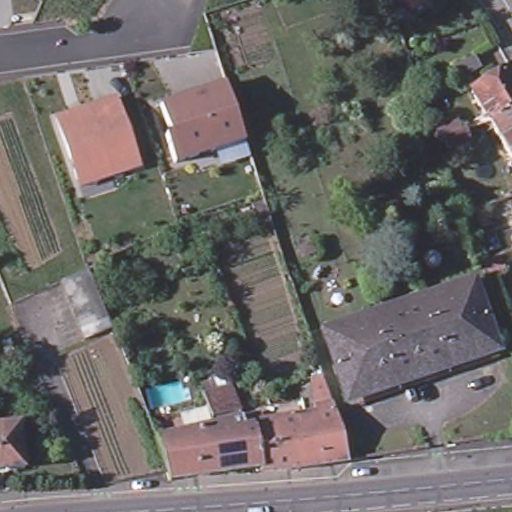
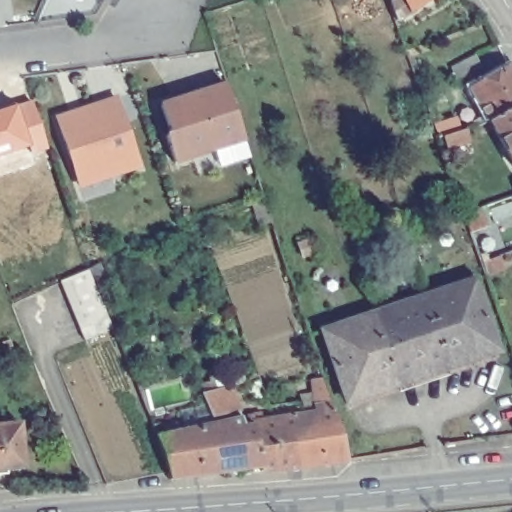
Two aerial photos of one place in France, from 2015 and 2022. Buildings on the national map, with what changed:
unchanged [(410,19),(396,28),(386,0),(436,0),(410,19)]
unchanged [(482,71),(457,85),(451,73),(475,60),(482,71)]
unchanged [(466,89),(506,66),(512,77),(512,108),(486,122),(466,89)]
unchanged [(240,141),(240,139),(225,144),(226,146),(170,164),(162,136),(166,135),(157,105),(181,97),(183,102),(192,99),(191,94),(221,84),(240,141)]
new [(35,101),(50,150),(31,154),(31,147),(0,156),(0,112),(35,101)]
unchanged [(79,185),(58,122),(117,102),(141,172),(112,181),(82,192),(79,185)]
unchanged [(512,108),(512,167),(486,122),(512,108)]
unchanged [(447,152),(446,148),(440,150),(438,145),(435,137),(441,135),(440,130),(465,122),(468,135),(471,145),(447,152)]
unchanged [(480,213),(487,235),(472,240),(465,219),(480,213)]
unchanged [(80,330),(75,315),(68,300),(62,286),(88,273),(95,290),(101,305),(107,320),(114,336),(88,346),(80,330)]
unchanged [(475,285),(497,355),(446,370),(422,301),(475,285)]
unchanged [(372,317),(422,301),(446,370),(396,386),(372,317)]
unchanged [(344,402),(323,332),(372,317),(396,386),(344,402)]
unchanged [(320,422),(310,390),(321,386),(340,435),(345,465),(297,472),(292,445),(316,439),(310,423),(320,422)]
unchanged [(228,392),(238,415),(212,426),(201,403),(228,392)]
unchanged [(209,454),(205,436),(241,421),(252,416),(261,415),(262,429),(298,425),(310,423),(316,439),(292,445),(297,472),(258,478),(257,473),(202,482),(197,457),(209,454)]
unchanged [(26,473),(0,476),(0,430),(22,426),(26,473)]
unchanged [(169,480),(160,452),(157,445),(165,443),(167,450),(205,436),(209,454),(197,457),(202,482),(171,488),(169,480)]

